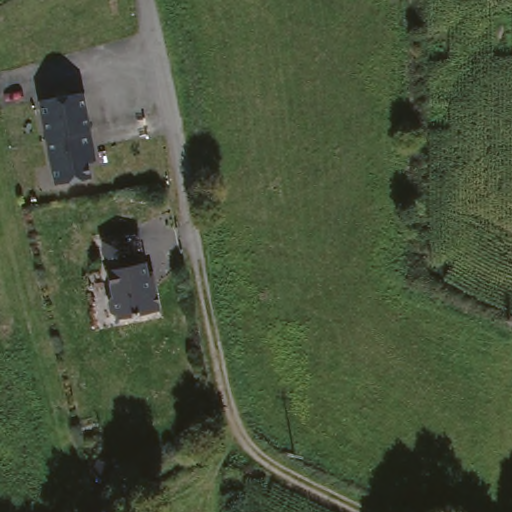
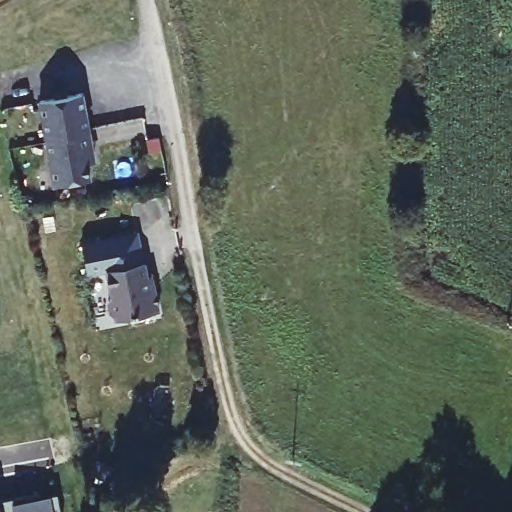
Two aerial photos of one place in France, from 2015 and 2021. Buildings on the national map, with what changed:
unchanged [(85,167),(88,183),(54,190),(44,146),(35,107),(57,102),(56,98),(67,95),(68,100),(83,96),(91,131),(96,150),(99,164),(85,167)]
unchanged [(134,259),(136,259),(142,284),(147,283),(153,306),(111,317),(110,313),(105,314),(104,310),(101,299),(100,295),(104,294),(98,268),(100,268),(96,253),(130,245),(134,259)]
new [(40,497),(41,501),(58,499),(60,512),(14,512),(12,502),(40,497)]
new [(12,502),(14,512),(0,512),(0,504),(12,502)]

